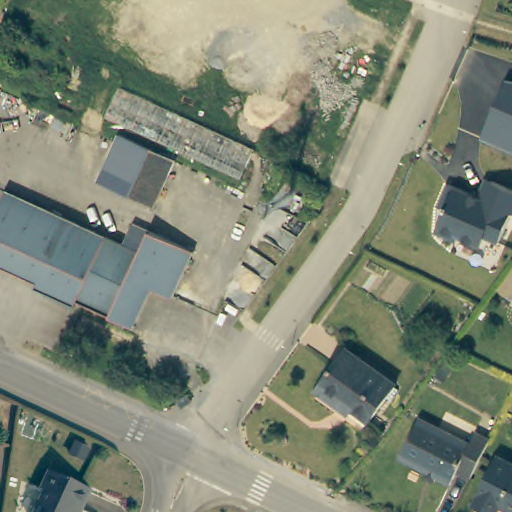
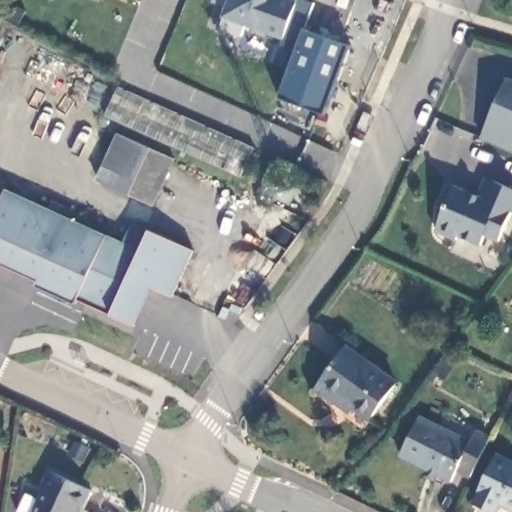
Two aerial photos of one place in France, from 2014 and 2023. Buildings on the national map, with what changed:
new [(327,115),(281,97),(299,50),(282,45),(284,40),(244,26),(241,37),(222,30),(223,18),(228,7),(213,3),(214,0),(302,0),(314,4),(305,30),(350,46),(327,115)]
unchanged [(507,79),(512,80),(512,150),(482,137),(507,79)]
unchanged [(241,178),(104,116),(118,86),(254,148),(241,178)]
unchanged [(129,196),(98,181),(119,134),(151,148),(129,196)]
unchanged [(174,159),(153,206),(129,196),(151,148),(174,159)]
unchanged [(499,240),(486,234),(482,245),(459,235),(457,239),(436,230),(446,208),(439,205),(449,182),(471,192),(478,195),(486,177),(492,180),(512,188),(512,211),(499,240)]
unchanged [(204,251),(183,297),(155,285),(137,325),(88,302),(85,307),(53,292),(56,284),(0,258),(0,224),(15,190),(132,244),(141,223),(204,251)]
unchanged [(346,402),(342,407),(317,389),(347,347),(397,383),(371,420),(346,402)]
unchanged [(453,460),(447,471),(396,445),(414,407),(464,433),(470,421),(484,428),(466,467),(453,460)]
unchanged [(500,504),(496,512),(493,512),(474,502),(498,455),(512,462),(512,510),(500,504)]
unchanged [(78,509),(77,512),(33,512),(44,490),(40,489),(49,471),(92,491),(83,511),(78,509)]

